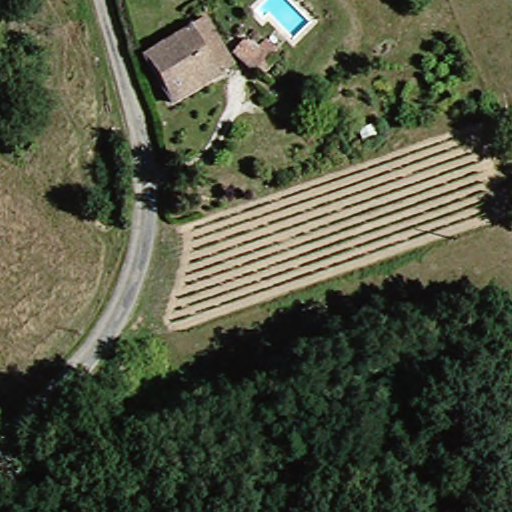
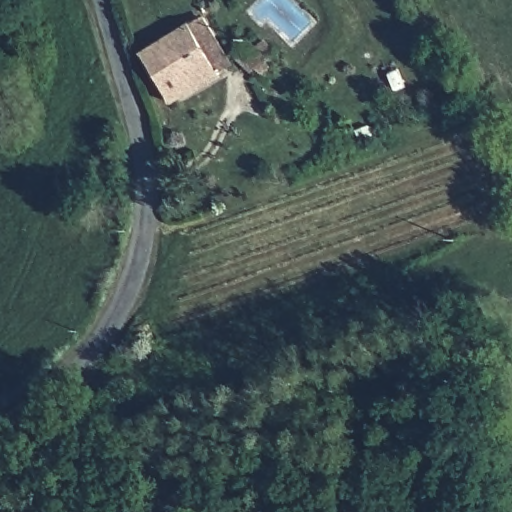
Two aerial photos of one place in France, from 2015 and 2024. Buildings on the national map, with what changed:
unchanged [(137,60),(179,34),(194,61),(207,51),(220,69),(205,80),(163,108),(137,60)]
unchanged [(244,73),(235,79),(225,60),(234,55),(244,73)]

